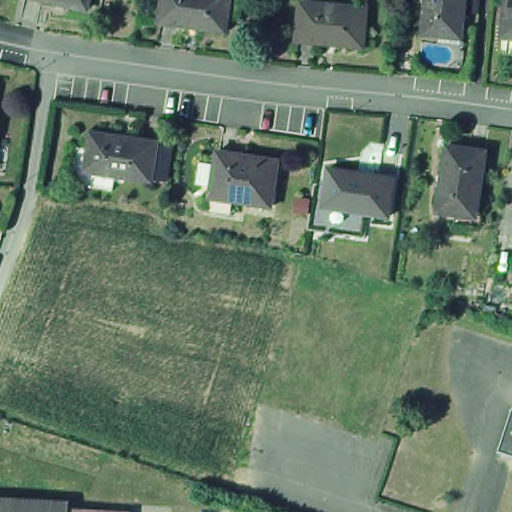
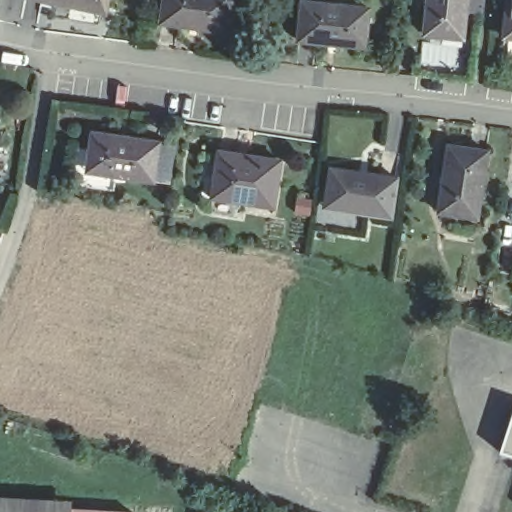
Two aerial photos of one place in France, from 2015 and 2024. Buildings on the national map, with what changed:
unchanged [(83,14),(20,0),(86,0),(83,14)]
unchanged [(158,0),(226,0),(221,32),(155,22),(158,0)]
unchanged [(453,43),(413,40),(417,0),(457,0),(453,43)]
unchanged [(512,43),(498,42),(502,0),(512,0),(512,43)]
unchanged [(360,47),(292,40),(295,1),(357,7),(363,7),(362,26),(360,47)]
unchanged [(71,184),(77,146),(89,148),(92,132),(159,141),(159,143),(172,145),(167,179),(154,177),(153,181),(116,175),(114,190),(71,184)]
unchanged [(451,210),(433,208),(443,140),(482,146),(472,207),(472,214),(451,210)]
unchanged [(207,212),(210,201),(215,154),(275,163),(268,209),(230,204),(229,215),(207,212)]
unchanged [(327,191),(330,173),(396,183),(390,222),(331,213),(323,212),(327,191)]
unchanged [(494,452),(510,405),(510,406),(512,407),(512,458),(495,452),(494,452)]
unchanged [(71,499),(71,507),(71,512),(0,512),(0,496),(71,499)]
unchanged [(132,511),(132,512),(71,512),(71,507),(132,511)]

